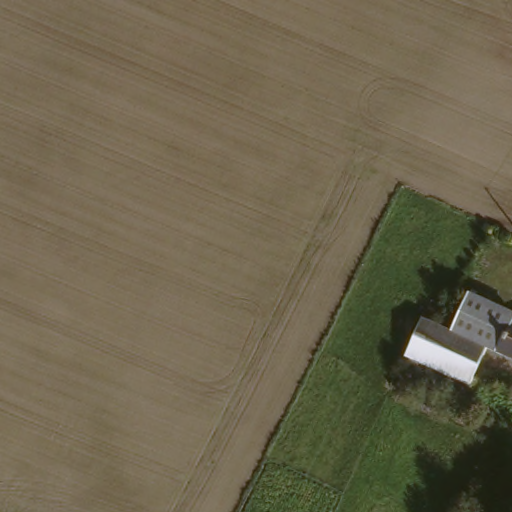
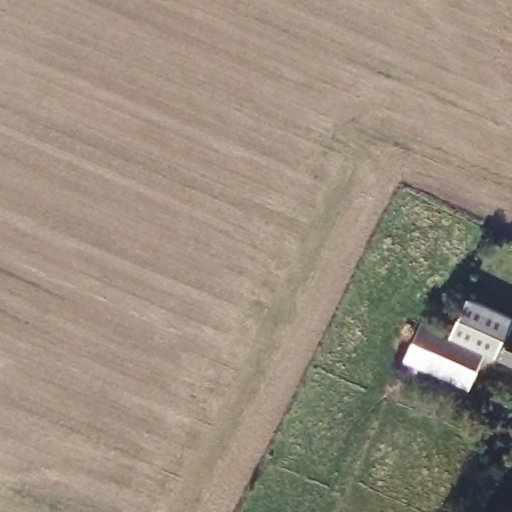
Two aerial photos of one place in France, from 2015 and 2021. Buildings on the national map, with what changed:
unchanged [(457,333),(476,296),(512,313),(512,326),(495,317),(481,345),(457,333)]
unchanged [(490,350),(473,384),(410,355),(427,320),(457,333),(481,345),(495,317),(512,326),(498,353),(490,350)]
unchanged [(498,353),(512,326),(512,359),(498,353)]

